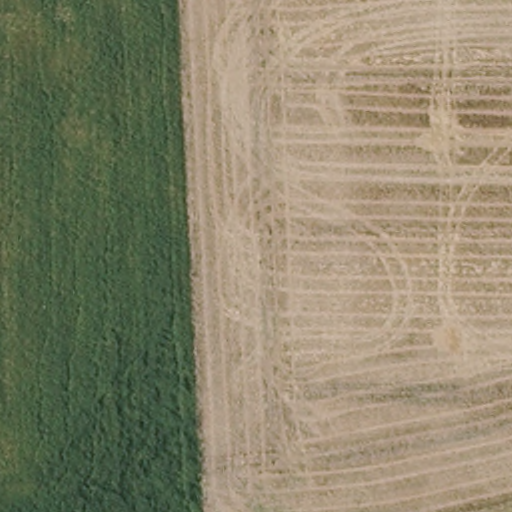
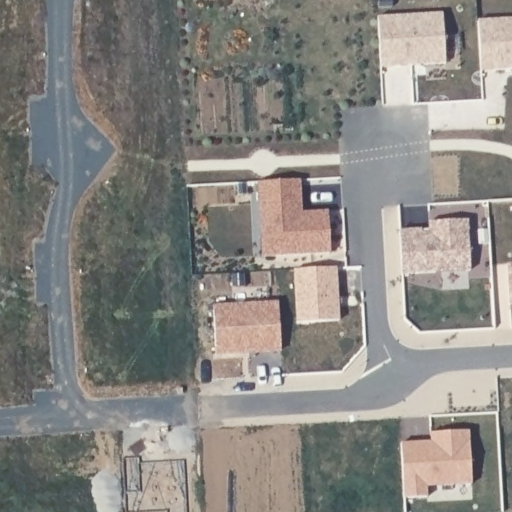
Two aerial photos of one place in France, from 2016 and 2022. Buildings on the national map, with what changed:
new [(442,14),(445,64),(424,65),(420,63),(413,63),(413,66),(380,68),(377,17),(442,14)]
new [(512,18),(512,69),(480,71),(478,20),(512,18)]
new [(257,183),(301,180),(303,212),(327,210),(330,254),(261,258),(257,183)]
new [(399,231),(427,228),(427,222),(469,218),(471,270),(401,274),(399,231)]
new [(507,265),(512,264),(512,305),(509,305),(507,265)]
new [(293,270),(335,268),(339,321),(295,323),(293,270)]
new [(213,305),(278,301),(281,351),(216,356),(213,305)]
new [(430,442),(431,447),(430,430),(469,428),(471,482),(426,484),(427,494),(404,496),(400,444),(423,442),(430,442)]

